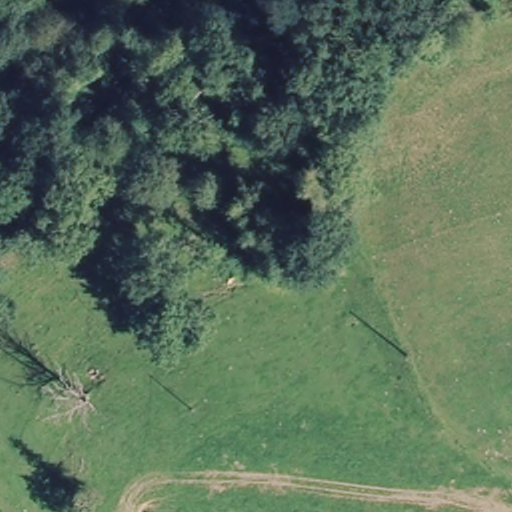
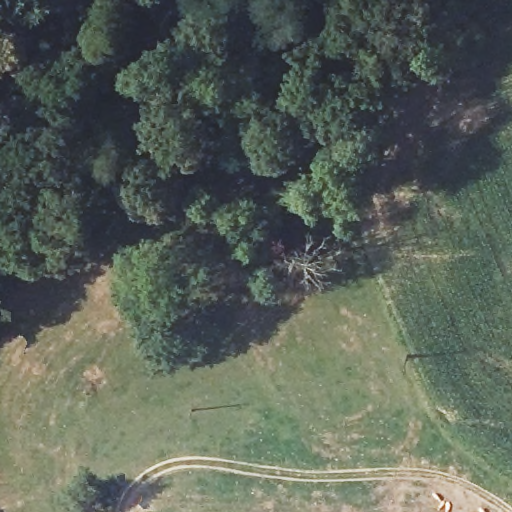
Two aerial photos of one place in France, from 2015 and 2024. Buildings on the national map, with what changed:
[]

